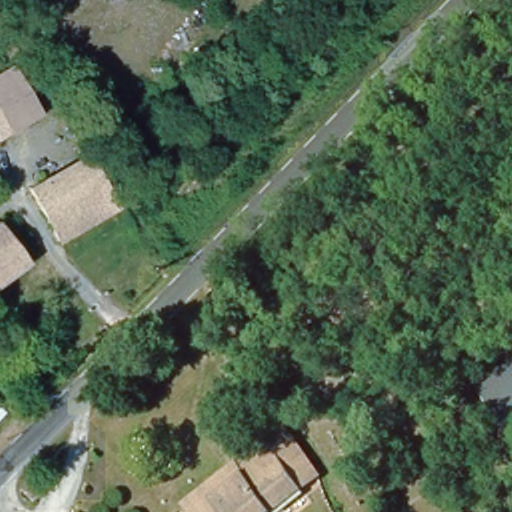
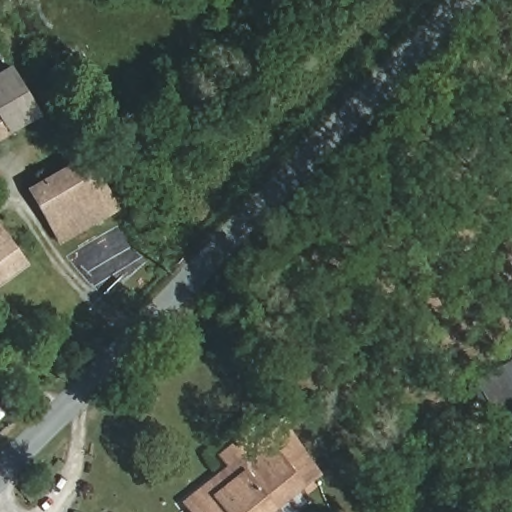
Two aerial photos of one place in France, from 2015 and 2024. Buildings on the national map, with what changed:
unchanged [(10,65),(41,116),(9,135),(0,119),(0,71),(10,65)]
unchanged [(80,151),(116,212),(57,246),(27,192),(47,181),(42,172),(80,151)]
unchanged [(29,264),(0,284),(0,223),(29,264)]
unchanged [(477,382),(512,362),(512,417),(502,423),(477,382)]
unchanged [(285,427),(321,476),(302,490),(267,440),(285,427)]
unchanged [(302,490),(272,512),(190,512),(182,503),(267,440),(302,490)]

